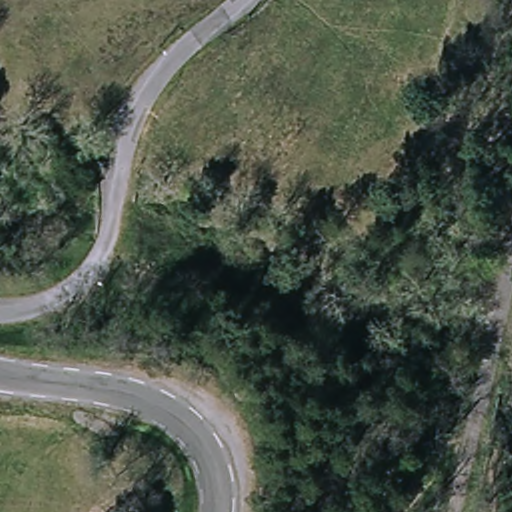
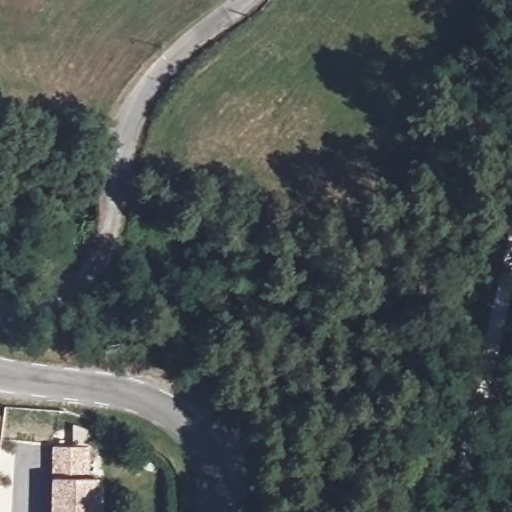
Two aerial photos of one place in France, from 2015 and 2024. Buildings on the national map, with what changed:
new [(7,419),(3,449),(0,449),(0,418),(7,419)]
new [(55,450),(74,449),(75,430),(90,432),(89,479),(55,479),(55,450)]
new [(89,479),(99,479),(99,512),(55,512),(55,479),(89,479)]

